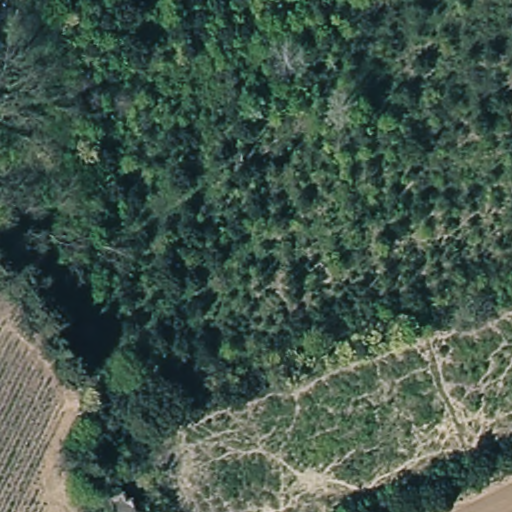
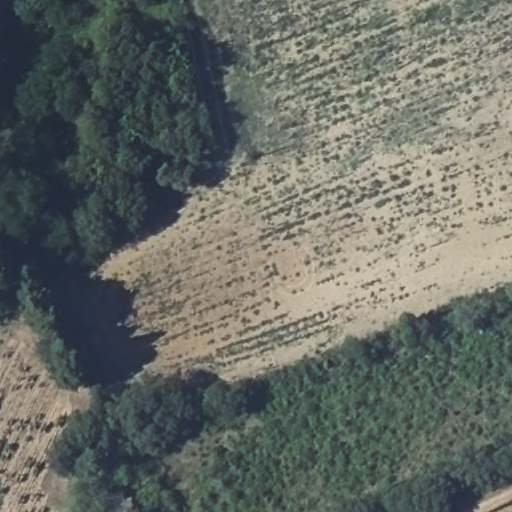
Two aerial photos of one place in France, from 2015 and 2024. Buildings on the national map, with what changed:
unchanged [(108,497),(118,493),(122,505),(131,503),(135,512),(113,512),(108,497)]

